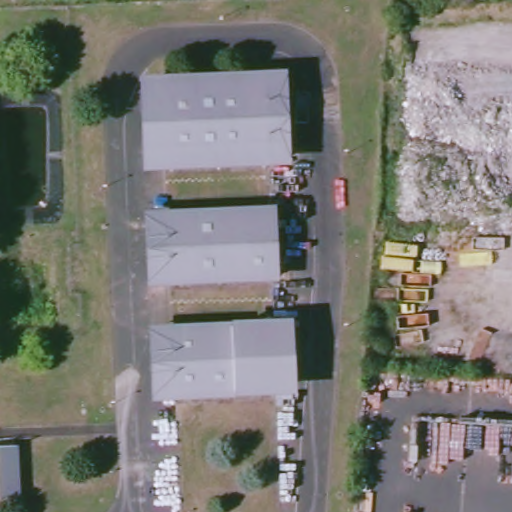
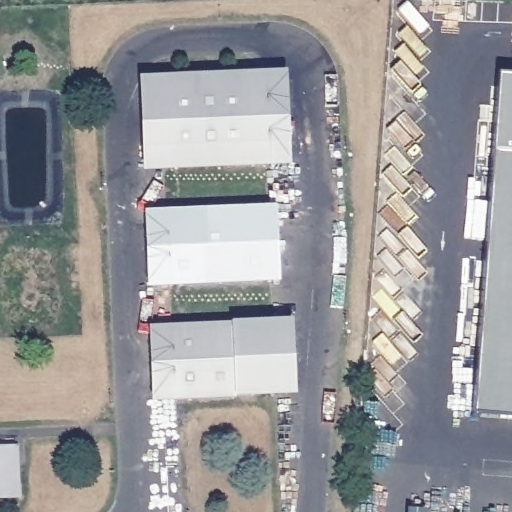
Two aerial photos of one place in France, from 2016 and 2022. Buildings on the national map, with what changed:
unchanged [(279,76),(287,157),(265,160),(257,78),(279,76)]
new [(512,77),(512,419),(473,416),(498,76),(512,77)]
unchanged [(145,170),(138,89),(257,78),(265,160),(145,170)]
unchanged [(270,212),(275,274),(172,283),(167,221),(270,212)]
unchanged [(167,221),(172,283),(151,285),(145,223),(167,221)]
unchanged [(292,324),(297,386),(239,392),(233,330),(292,324)]
unchanged [(178,397),(172,335),(233,330),(239,392),(178,397)]
unchanged [(172,335),(178,397),(156,399),(150,337),(172,335)]
unchanged [(22,496),(0,498),(0,448),(17,446),(22,496)]

